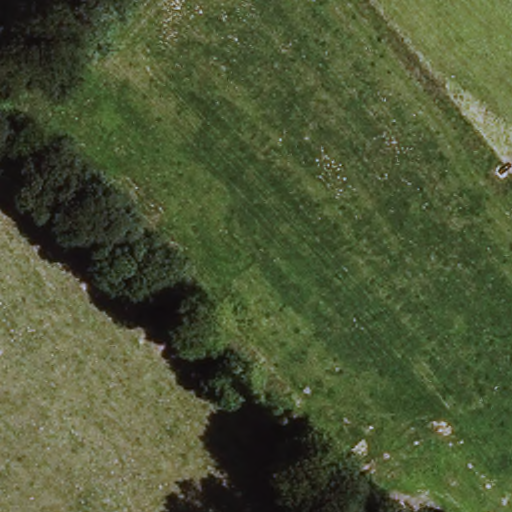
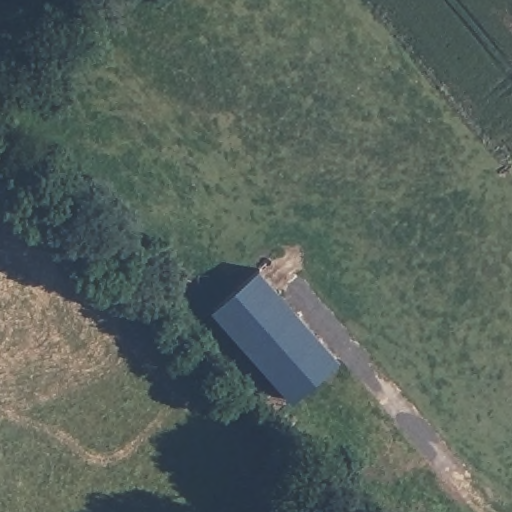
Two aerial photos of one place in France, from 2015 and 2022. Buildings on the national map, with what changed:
new [(262,268),(342,360),(293,403),(214,311),(262,268)]

